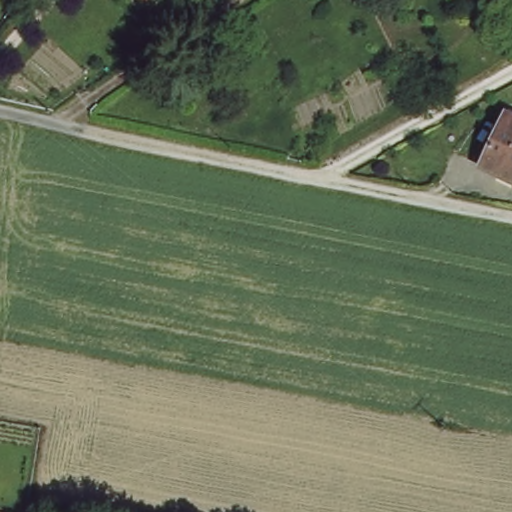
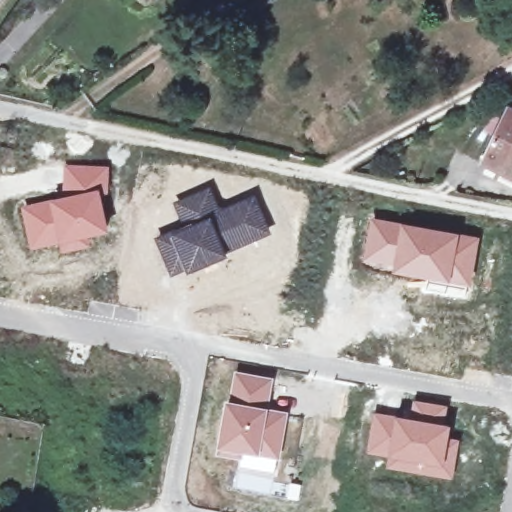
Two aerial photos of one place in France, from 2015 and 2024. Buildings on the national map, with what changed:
unchanged [(504,110),(512,113),(512,176),(481,162),(504,110)]
new [(64,195),(65,164),(110,165),(109,193),(102,194),(109,233),(92,237),(94,246),(61,254),(58,244),(30,250),(21,206),(64,195)]
new [(212,185),(221,207),(212,211),(183,225),(174,201),(212,185)]
new [(221,207),(255,192),(272,234),(227,252),(212,211),(221,207)]
new [(183,225),(212,211),(227,252),(229,256),(172,277),(155,237),(183,225)]
new [(370,216),(481,236),(472,287),(392,272),(393,267),(362,261),(370,216)]
new [(234,370),(274,377),(269,406),(233,401),(234,397),(229,396),(234,370)]
new [(413,399),(448,405),(446,423),(451,424),(449,437),(460,438),(453,480),(386,468),(387,457),(366,453),(373,412),(409,417),(413,399)]
new [(226,400),(228,400),(233,401),(269,406),(289,412),(279,461),(277,460),(274,474),(239,467),(241,458),(216,453),(226,400)]

